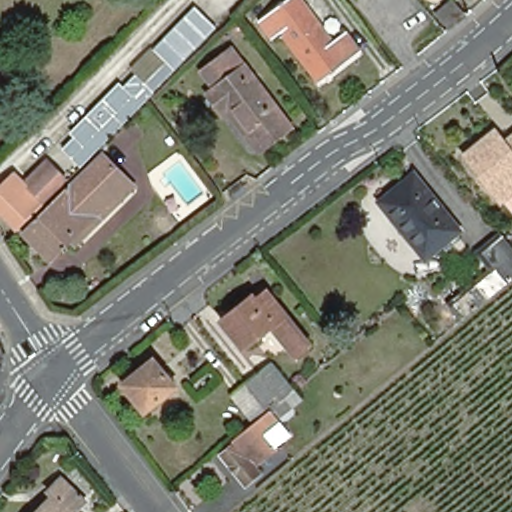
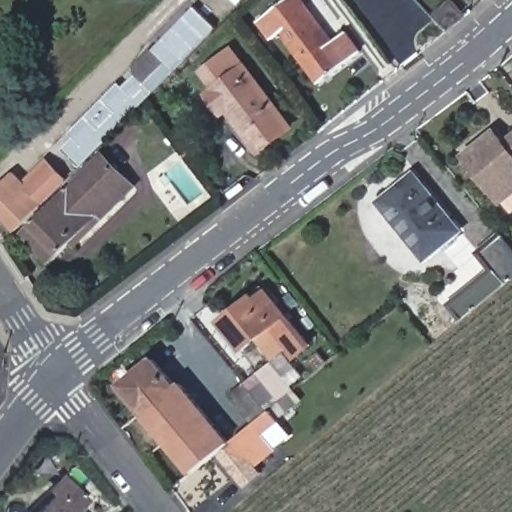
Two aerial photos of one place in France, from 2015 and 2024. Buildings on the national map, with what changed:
unchanged [(267,0),(275,10),(290,0),(303,0),(336,45),(346,39),(360,57),(320,85),(285,37),(271,45),(256,25),(263,20),(253,5),(260,0),(267,0)]
unchanged [(465,14),(450,27),(436,12),(452,0),(465,14)]
unchanged [(295,124),(266,144),(238,109),(229,114),(214,91),(222,85),(210,68),(239,47),(295,124)]
unchanged [(156,94),(81,166),(66,150),(78,137),(75,133),(120,84),(125,89),(138,76),(156,94)]
unchanged [(499,130),(507,141),(512,138),(512,193),(505,199),(468,154),(499,130)]
unchanged [(26,234),(34,225),(109,152),(138,183),(144,188),(79,249),(75,245),(62,254),(61,255),(52,265),(26,234)]
unchanged [(0,189),(18,170),(34,186),(56,165),(71,180),(21,231),(0,210),(0,189)]
unchanged [(414,174),(460,231),(426,260),(380,201),(414,174)]
unchanged [(241,183),(245,188),(233,195),(230,192),(241,183)]
unchanged [(458,318),(445,302),(486,268),(475,254),(498,235),(512,254),(512,275),(458,318)]
unchanged [(229,313),(252,293),(263,284),(266,288),(310,341),(297,352),(273,324),(243,348),(227,328),(220,320),(229,313)]
unchanged [(154,357),(177,386),(170,391),(145,411),(122,383),(154,357)]
unchanged [(235,394),(250,381),(262,372),(276,361),(292,380),(300,388),(273,410),(257,423),(235,394)]
new [(145,411),(170,391),(177,386),(183,381),(231,441),(191,475),(142,414),(145,411)]
unchanged [(256,465),(263,473),(255,480),(250,483),(246,487),(237,476),(222,457),(240,443),(239,442),(237,440),(257,423),(278,448),(269,455),(256,465)]
unchanged [(59,499),(55,496),(66,483),(90,505),(83,512),(46,512),(59,499)]

